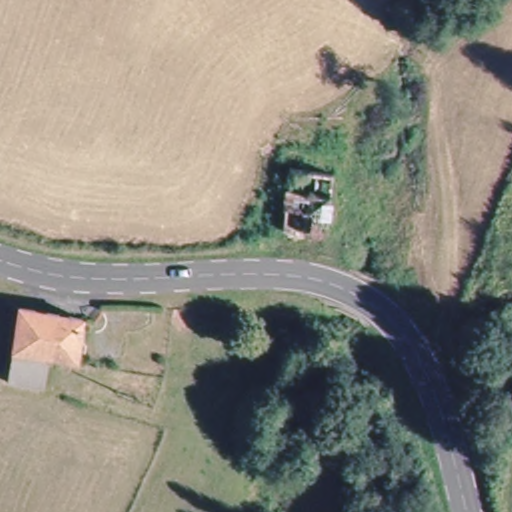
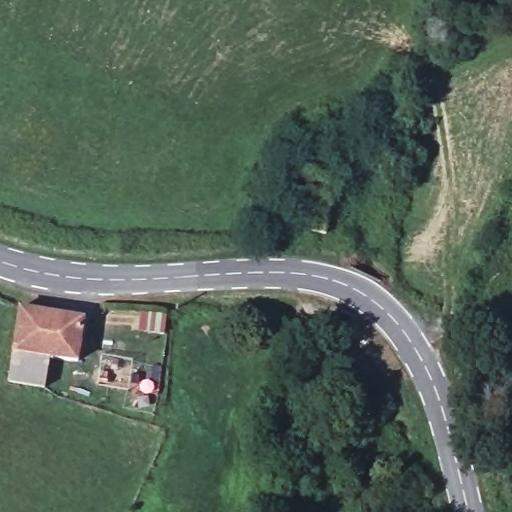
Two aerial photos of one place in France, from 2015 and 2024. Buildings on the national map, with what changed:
unchanged [(20,305),(82,318),(76,365),(57,362),(15,354),(20,305)]

